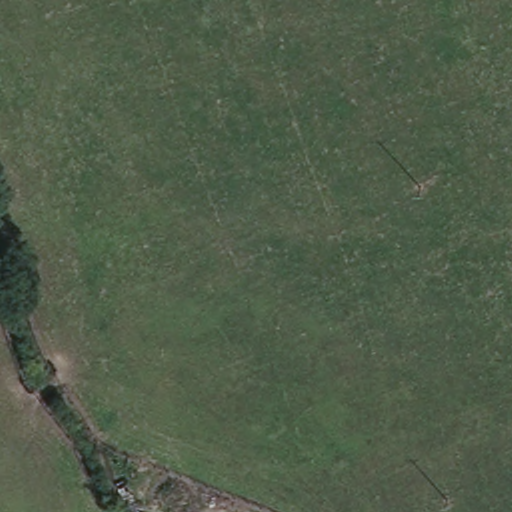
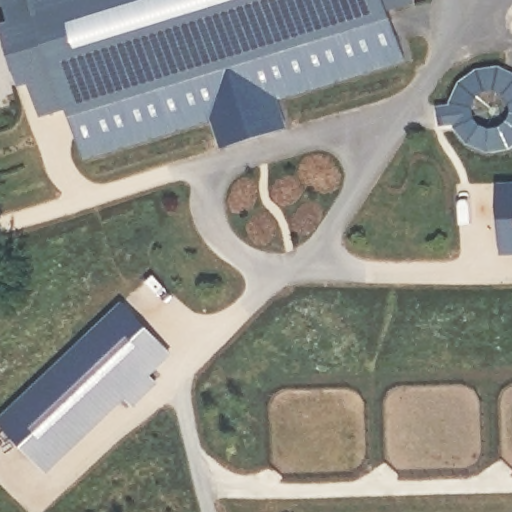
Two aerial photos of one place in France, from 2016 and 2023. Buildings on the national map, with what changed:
new [(32,80),(12,18),(21,15),(16,0),(413,0),(395,7),(410,56),(284,98),(291,126),(225,146),(217,116),(90,156),(74,106),(50,112),(41,78),(32,80)]
new [(501,155),(492,156),(484,155),(475,153),(467,149),(460,143),(455,136),(450,125),(437,126),(435,104),(448,103),(451,94),(455,86),(460,79),(467,74),(475,70),(484,67),(492,66),(501,67),(509,70),(512,71),(512,103),(508,96),(501,91),(493,90),(485,91),(477,96),(473,104),(471,111),(473,120),(477,127),(485,131),(493,133),(501,131),(508,127),(512,120),(512,151),(509,153),(501,155)]
new [(512,253),(499,254),(498,182),(512,182),(512,253)]
new [(131,296),(177,345),(154,369),(161,376),(133,404),(125,398),(46,470),(0,419),(131,296)]

